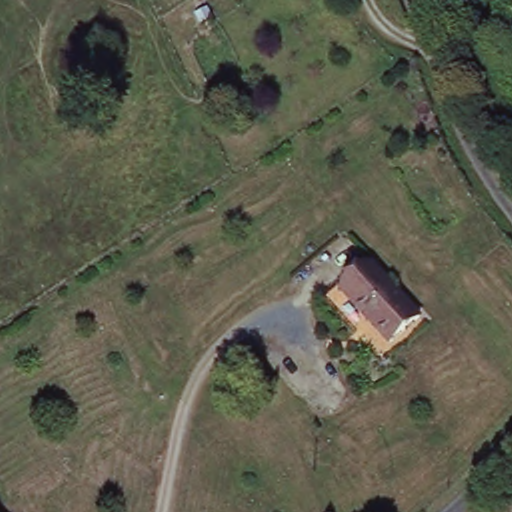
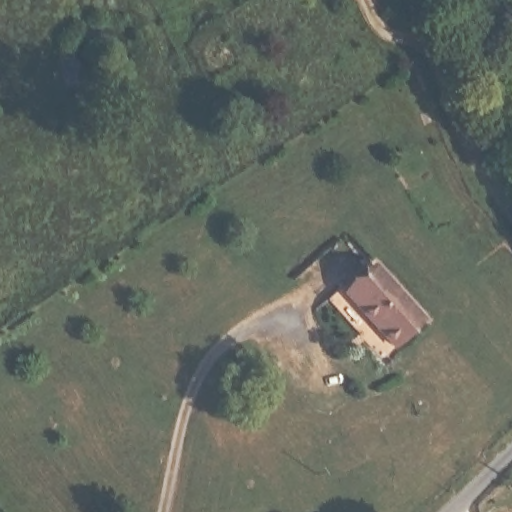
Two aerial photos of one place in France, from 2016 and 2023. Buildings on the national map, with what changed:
unchanged [(420,318),(390,347),(343,293),(373,266),(420,318)]

